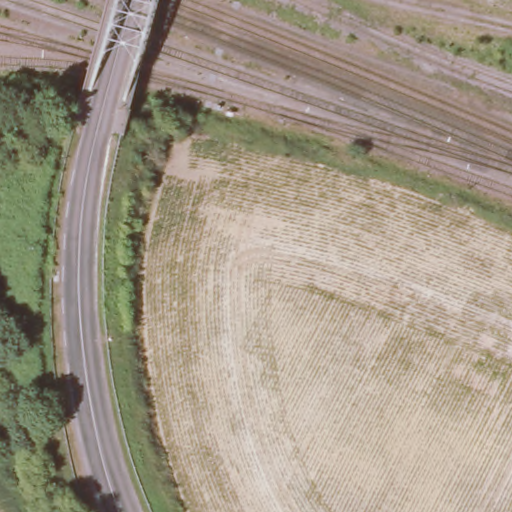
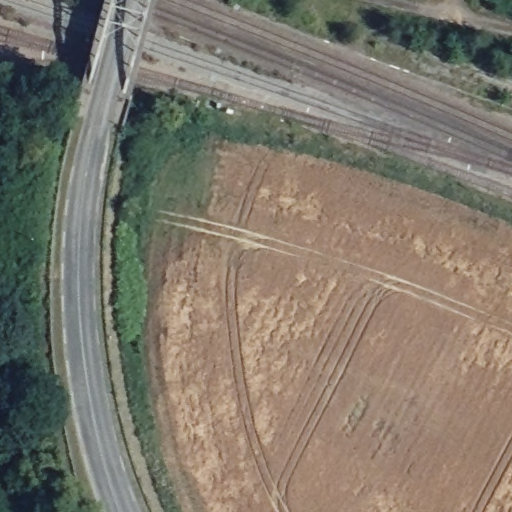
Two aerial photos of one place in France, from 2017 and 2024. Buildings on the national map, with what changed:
[]

